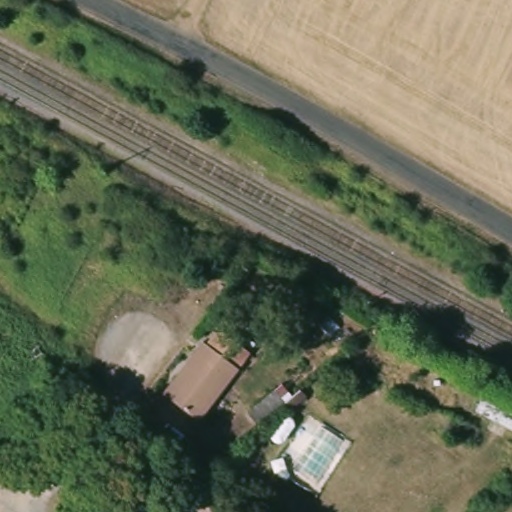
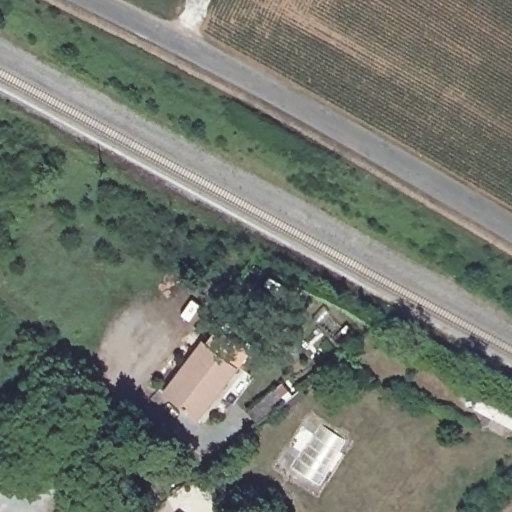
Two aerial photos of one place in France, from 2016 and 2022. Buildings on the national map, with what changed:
unchanged [(205,412),(172,389),(204,343),(205,344),(222,320),(253,342),(205,412)]
unchanged [(279,392),(290,405),(266,425),(255,413),(279,392)]

